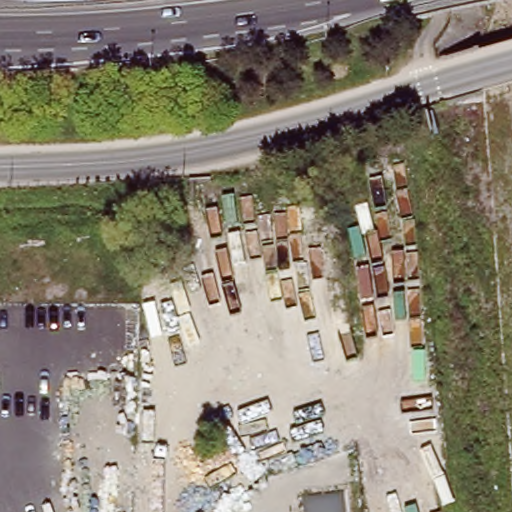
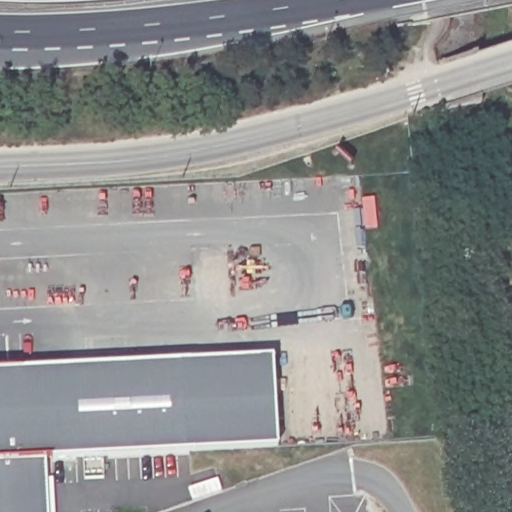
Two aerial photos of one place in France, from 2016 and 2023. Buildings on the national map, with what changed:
new [(55,458),(57,512),(0,512),(0,370),(275,356),(280,447),(55,458)]

